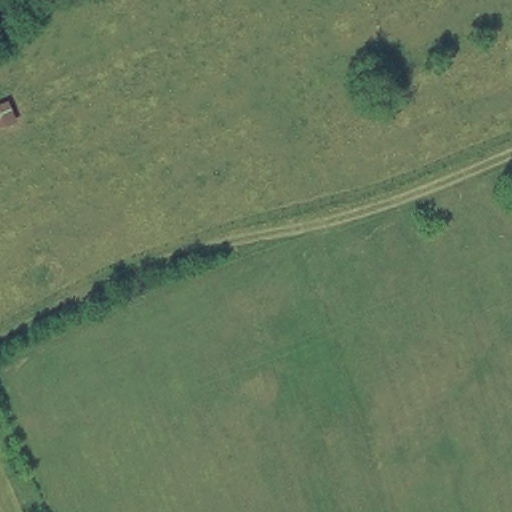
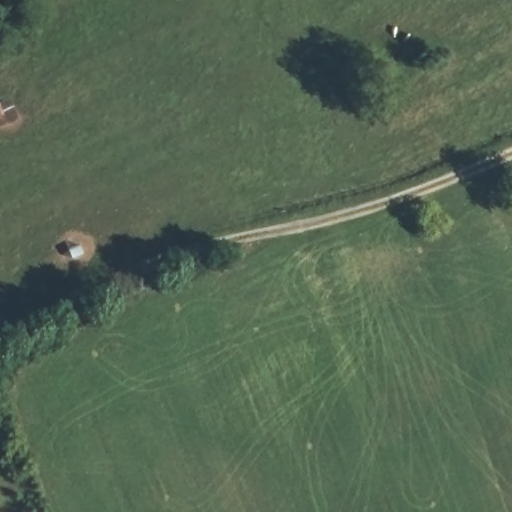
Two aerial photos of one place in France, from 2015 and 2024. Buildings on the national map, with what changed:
unchanged [(26,121),(0,129),(0,104),(17,96),(26,121)]

